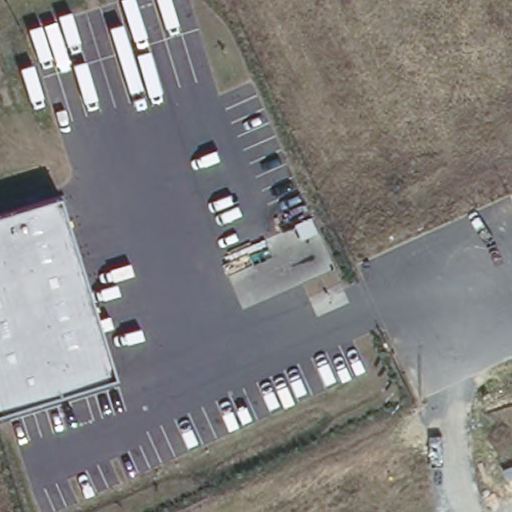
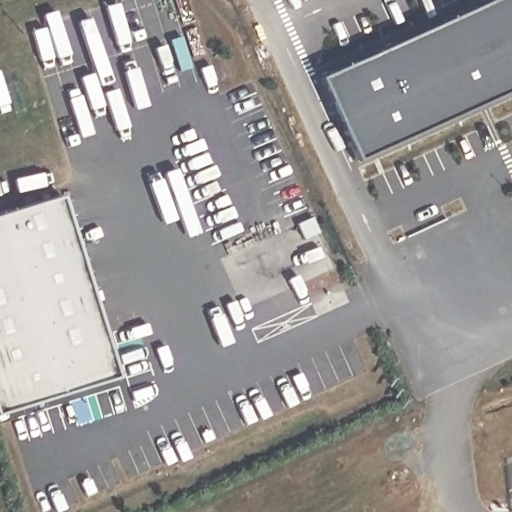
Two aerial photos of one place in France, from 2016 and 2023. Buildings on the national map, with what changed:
new [(489,0),(512,0),(512,87),(356,160),(318,78),(489,0)]
unchanged [(0,410),(0,213),(59,194),(114,375),(0,410)]

